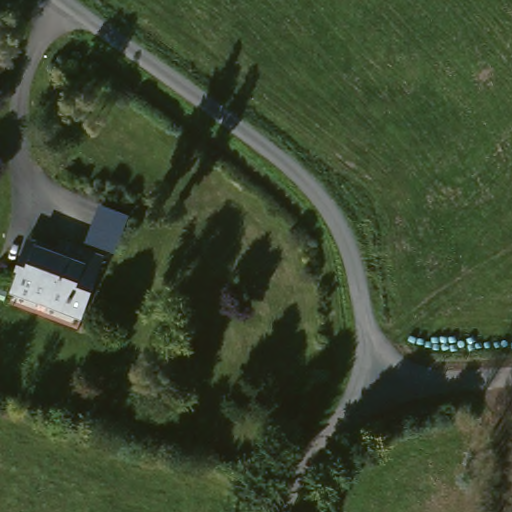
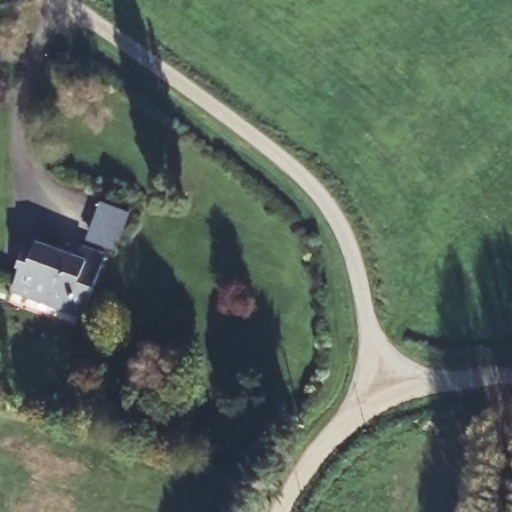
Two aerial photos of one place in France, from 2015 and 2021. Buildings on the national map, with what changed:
unchanged [(102,202),(137,218),(122,255),(86,240),(102,202)]
unchanged [(65,254),(96,263),(78,318),(5,297),(24,241),(65,254)]
unchanged [(69,244),(110,257),(88,320),(78,318),(96,263),(65,254),(69,244)]

